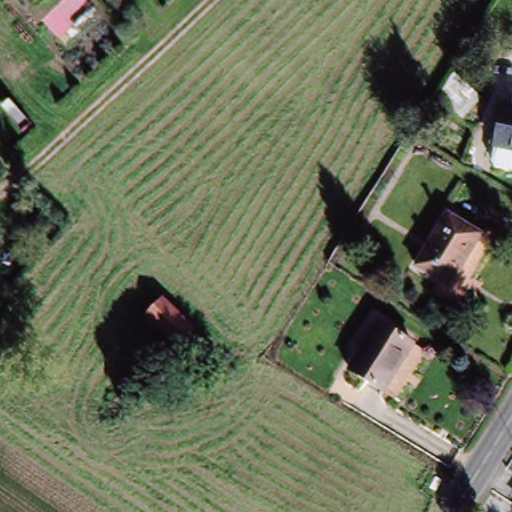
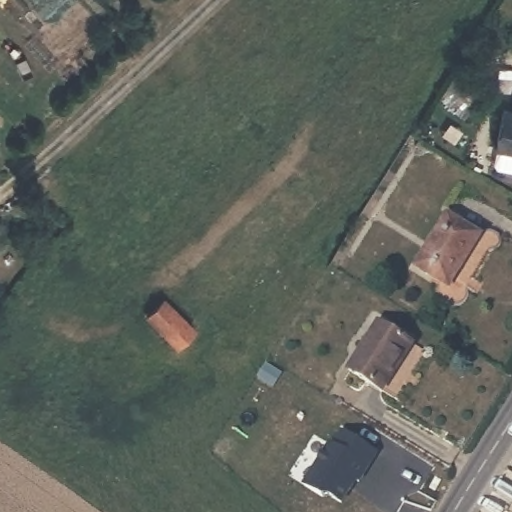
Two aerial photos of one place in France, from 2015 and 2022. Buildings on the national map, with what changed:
unchanged [(469,103),(452,120),(439,109),(455,92),(469,103)]
unchanged [(491,177),(495,156),(501,117),(512,119),(512,181),(491,177)]
unchanged [(447,220),(482,241),(453,291),(417,270),(447,220)]
unchanged [(192,336),(175,352),(147,322),(165,306),(192,336)]
unchanged [(414,347),(386,398),(352,379),(380,329),(414,347)]
new [(327,494),(321,506),(303,495),(345,431),(380,452),(363,480),(360,478),(343,504),(327,494)]

